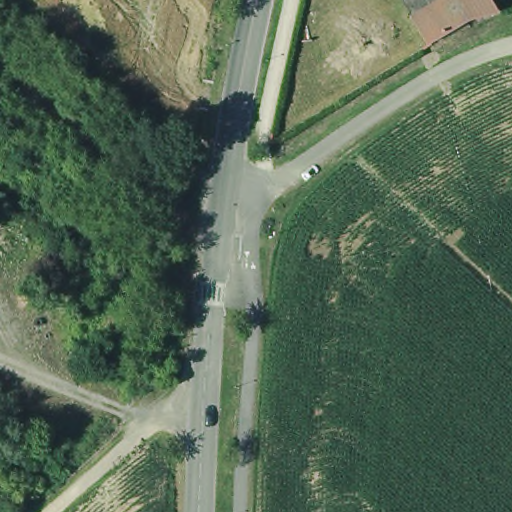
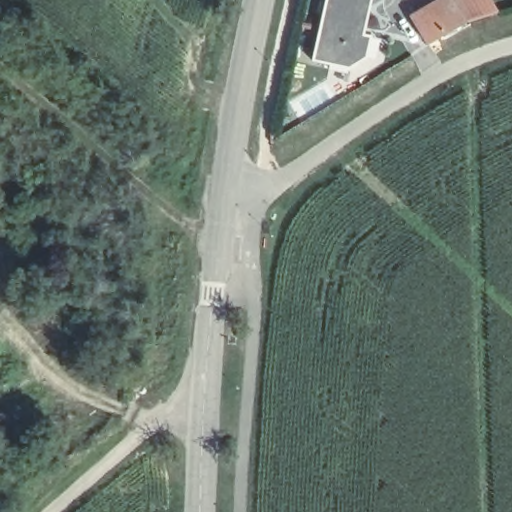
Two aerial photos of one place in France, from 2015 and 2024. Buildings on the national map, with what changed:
new [(367,58),(348,69),(312,61),(326,0),(372,0),(364,35),(371,36),(367,58)]
unchanged [(412,14),(427,5),(429,9),(443,0),(486,0),(488,4),(468,19),(466,20),(429,41),(412,14)]

